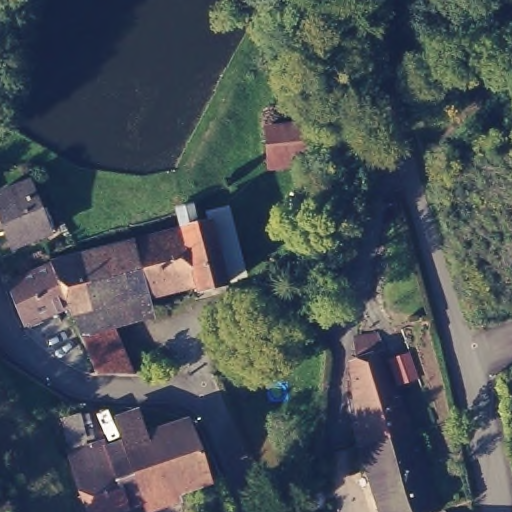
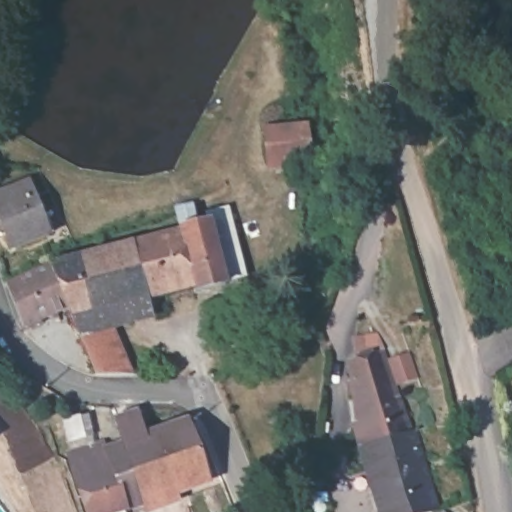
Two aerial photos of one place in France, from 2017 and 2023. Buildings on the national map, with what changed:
unchanged [(305,133),(308,168),(263,173),(260,138),(305,133)]
unchanged [(33,183),(54,234),(17,248),(0,204),(0,195),(33,183)]
unchanged [(68,302),(51,259),(50,258),(181,225),(181,223),(211,216),(208,207),(229,202),(235,223),(231,224),(242,271),(241,273),(226,276),(226,280),(196,287),(195,282),(73,314),(68,302)]
unchanged [(8,278),(51,259),(68,302),(25,321),(8,278)]
unchanged [(96,369),(81,333),(112,325),(131,370),(96,369)]
unchanged [(355,425),(367,421),(356,373),(355,360),(358,360),(355,338),(375,335),(385,350),(400,396),(398,398),(410,432),(360,447),(355,425)]
unchanged [(123,445),(115,421),(140,413),(147,437),(191,423),(200,449),(202,456),(211,479),(143,503),(123,445)]
unchanged [(79,416),(84,436),(70,440),(65,420),(79,416)]
unchanged [(410,432),(413,431),(437,510),(429,512),(379,512),(360,447),(410,432)]
unchanged [(110,512),(87,512),(70,458),(100,449),(100,452),(123,445),(143,503),(110,512)]

